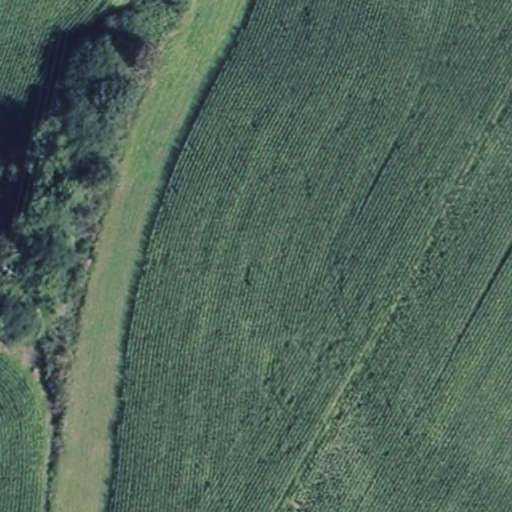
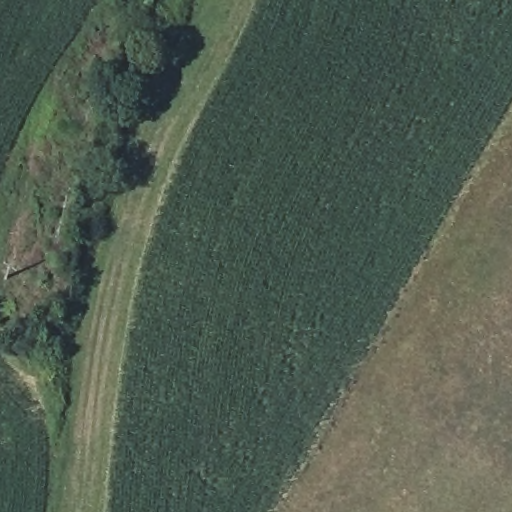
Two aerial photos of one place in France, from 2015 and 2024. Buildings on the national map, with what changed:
[]

